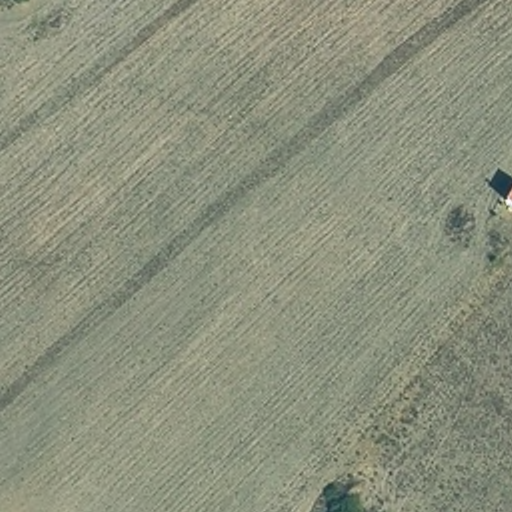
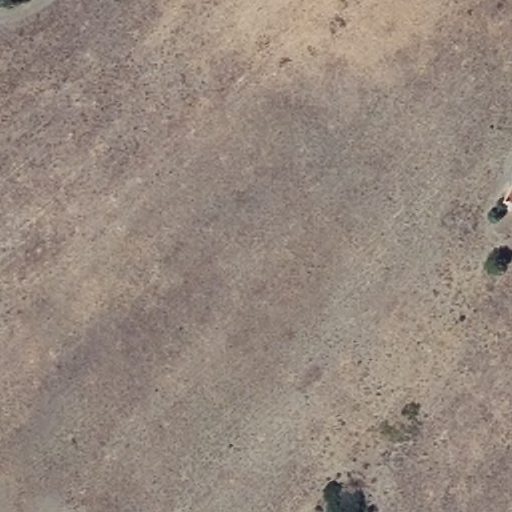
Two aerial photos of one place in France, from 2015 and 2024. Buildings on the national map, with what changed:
unchanged [(512,175),(512,200),(503,195),(512,175)]

